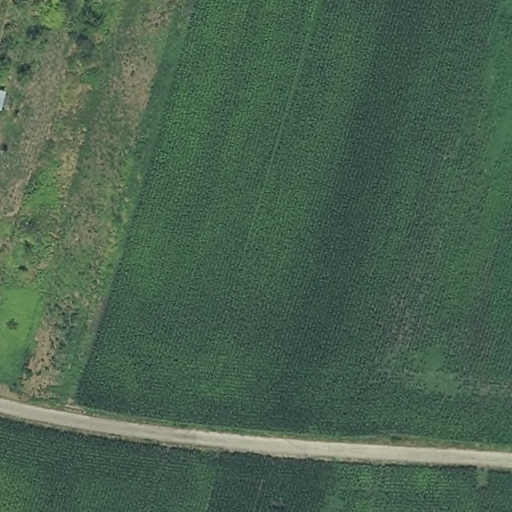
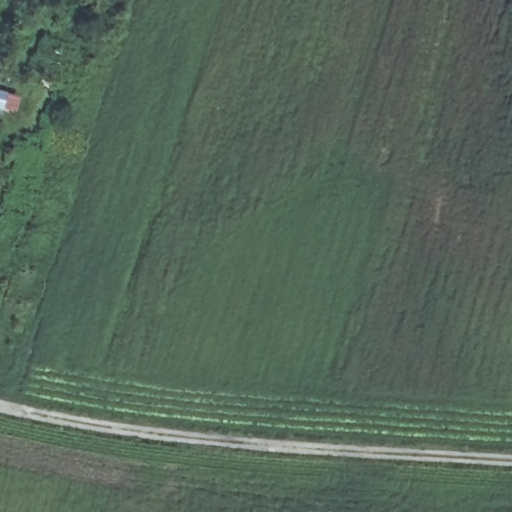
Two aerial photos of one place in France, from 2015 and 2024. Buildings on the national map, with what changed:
unchanged [(3,117),(0,116),(0,94),(7,96),(3,117)]

